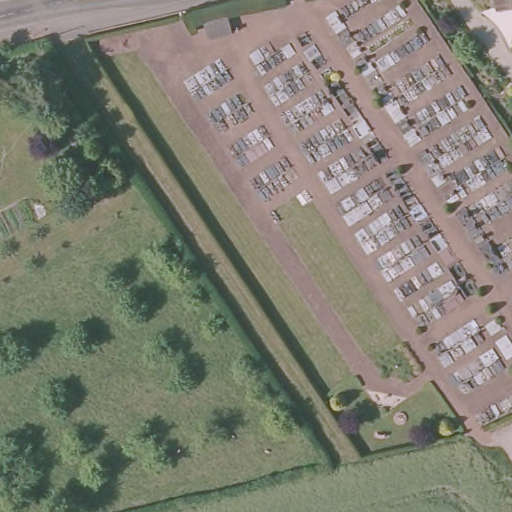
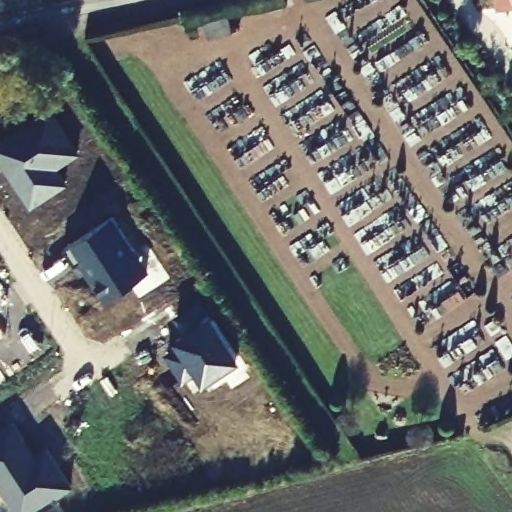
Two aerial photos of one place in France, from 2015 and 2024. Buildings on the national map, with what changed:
unchanged [(499,0),(512,0),(512,7),(500,9),(499,0)]
new [(80,152),(58,168),(68,183),(31,209),(0,162),(0,138),(49,106),(80,152)]
new [(149,271),(106,301),(78,261),(74,264),(64,247),(112,217),(149,271)]
new [(211,315),(240,358),(203,384),(196,372),(183,382),(164,352),(175,343),(171,337),(186,330),(174,317),(199,298),(211,315)]
new [(5,332),(0,336),(0,325),(5,332)]
new [(6,380),(0,384),(0,372),(6,380)]
new [(34,453),(45,447),(71,487),(34,512),(14,512),(0,491),(0,429),(12,421),(34,453)]

